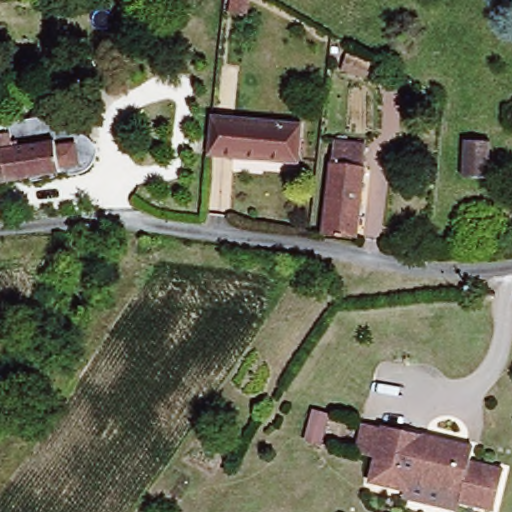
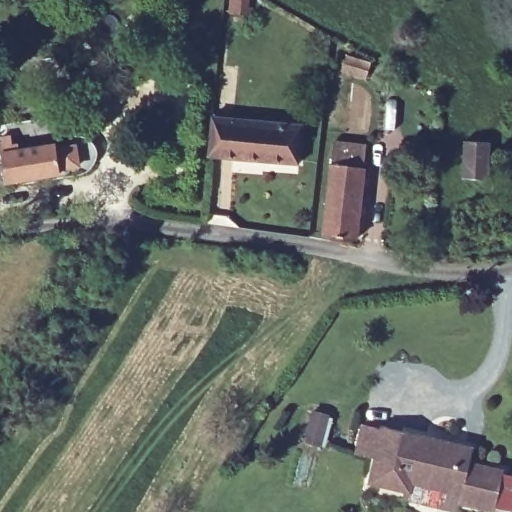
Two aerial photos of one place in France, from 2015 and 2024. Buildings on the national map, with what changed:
unchanged [(160,0),(189,0),(175,16),(160,0)]
unchanged [(64,123),(66,138),(76,139),(83,143),(86,150),(86,159),(84,165),(78,169),(0,181),(0,121),(63,111),(64,123)]
unchanged [(208,119),(299,129),(295,164),(206,155),(208,119)]
unchanged [(327,143),(361,146),(353,237),(319,232),(327,143)]
unchanged [(472,146),(501,146),(501,182),(473,183),(472,146)]
unchanged [(405,492),(402,506),(363,497),(368,472),(349,467),(357,438),(377,442),(381,427),(474,450),(471,465),(502,474),(493,512),(485,512),(459,505),(405,492)]

